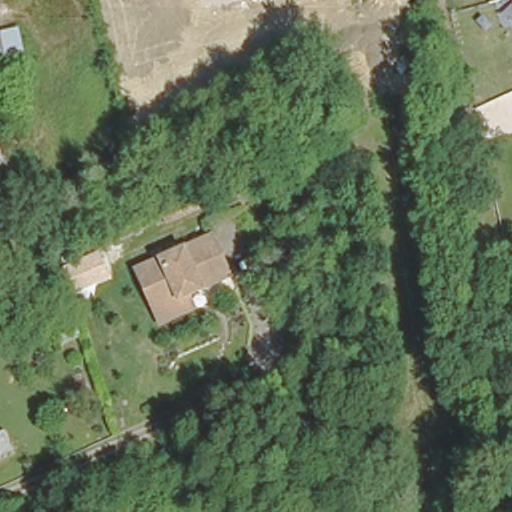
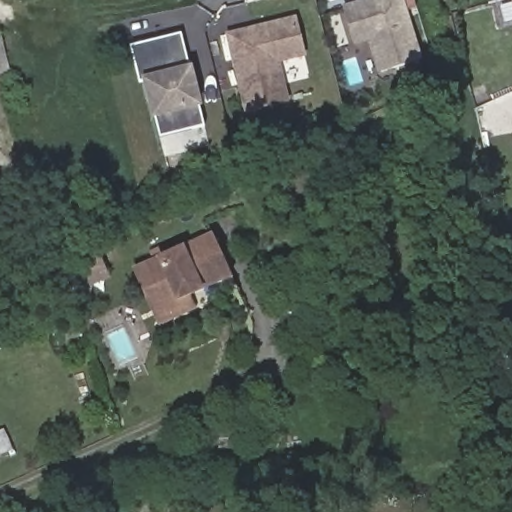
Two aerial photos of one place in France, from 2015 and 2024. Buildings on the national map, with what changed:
new [(342,5),(360,0),(403,0),(421,59),(377,73),(368,40),(353,46),(342,5)]
unchanged [(511,0),(512,0),(512,4),(511,0)]
new [(307,57),(279,63),(288,103),(244,114),(225,33),(296,16),(307,57)]
unchanged [(0,32),(9,29),(21,73),(12,76),(0,79),(0,32)]
new [(192,64),(202,106),(204,127),(158,137),(151,119),(142,80),(139,80),(130,45),(180,33),(192,64)]
unchanged [(159,326),(153,314),(134,275),(210,238),(229,277),(214,285),(199,292),(189,297),(194,308),(159,326)]
unchanged [(52,272),(55,282),(32,290),(29,279),(52,272)]
unchanged [(0,457),(0,440),(4,455),(0,457)]

